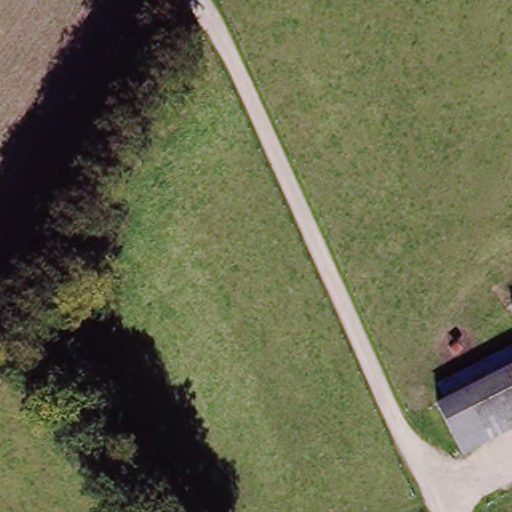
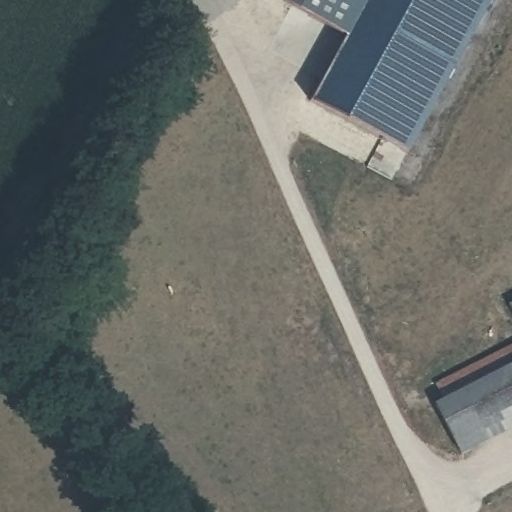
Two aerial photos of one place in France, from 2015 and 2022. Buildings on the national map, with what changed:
new [(309,101),(346,36),(278,0),(490,0),(408,153),(309,101)]
unchanged [(512,352),(512,408),(479,424),(457,379),(512,352)]
unchanged [(479,424),(462,433),(439,389),(457,379),(479,424)]

